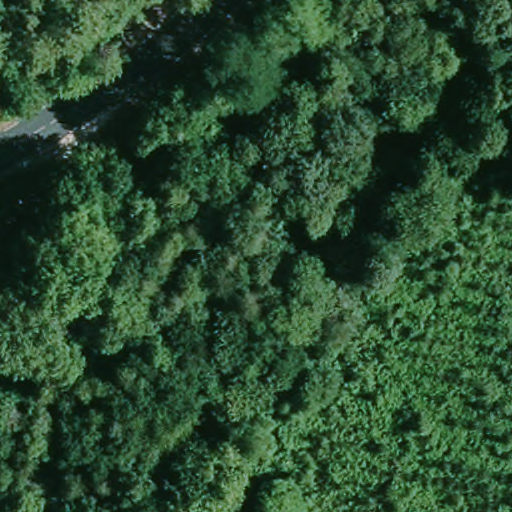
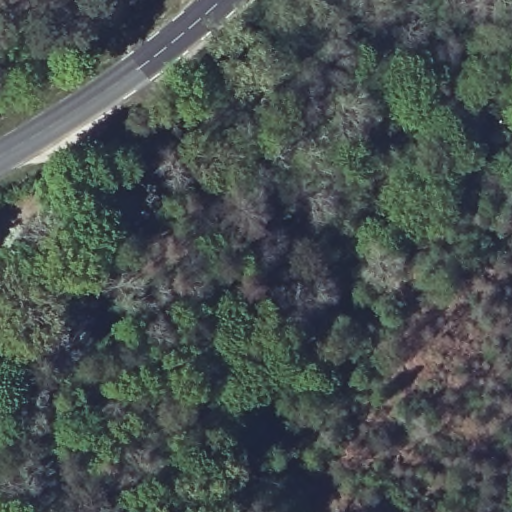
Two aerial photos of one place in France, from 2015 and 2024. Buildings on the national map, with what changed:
unchanged [(39,320),(54,323),(50,343),(35,340),(39,320)]

